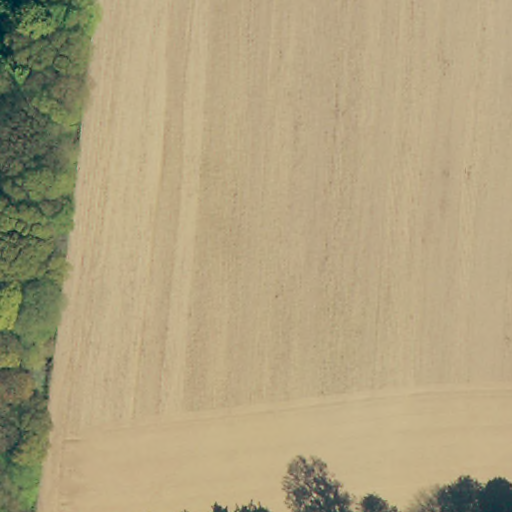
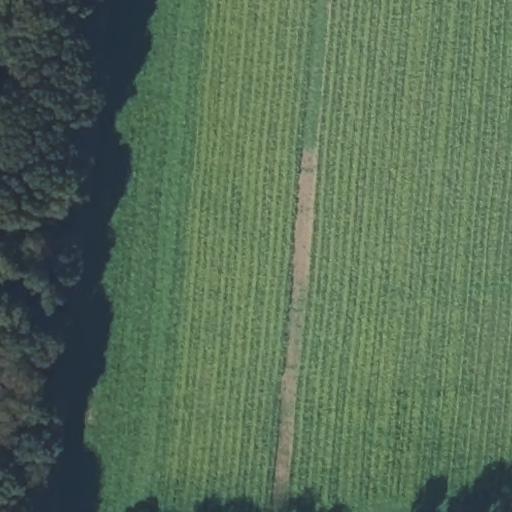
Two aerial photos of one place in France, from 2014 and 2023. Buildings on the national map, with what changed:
[]

